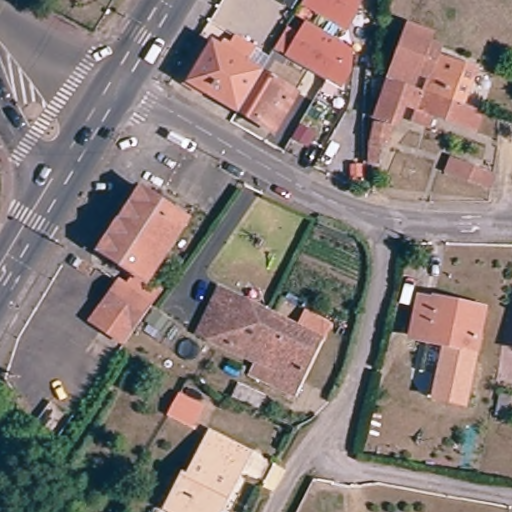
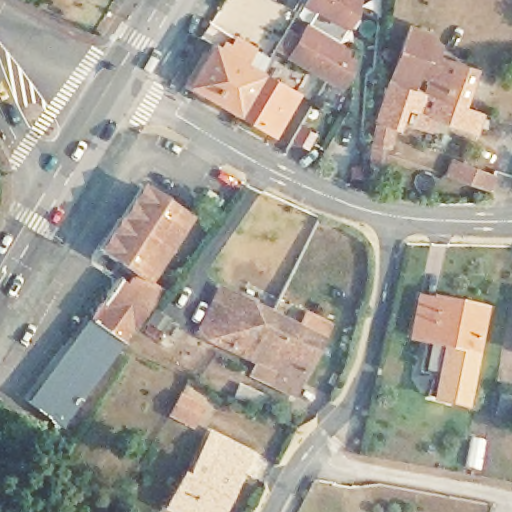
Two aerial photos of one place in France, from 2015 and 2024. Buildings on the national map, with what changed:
unchanged [(297,9),(281,0),(302,0),(297,9)]
unchanged [(363,14),(353,31),(307,4),(310,0),(363,0),(363,14)]
unchanged [(402,18),(424,25),(422,32),(433,36),(430,47),(472,62),(460,98),(383,71),(402,18)]
unchanged [(350,45),(351,46),(343,61),(351,65),(339,86),(325,78),(287,55),(307,21),(350,45)]
unchanged [(260,73),(256,78),(234,117),(185,89),(208,50),(230,63),(239,48),(265,63),(260,73)]
unchanged [(395,118),(371,110),(378,90),(372,88),(379,70),(383,71),(460,98),(477,104),(471,121),(430,107),(425,120),(397,111),(395,118)]
unchanged [(290,98),(267,136),(234,117),(256,78),(290,98)]
unchanged [(387,135),(378,134),(375,156),(362,155),(362,111),(388,121),(387,135)]
unchanged [(488,172),(483,184),(441,167),(446,155),(488,172)]
unchanged [(115,257),(95,244),(137,184),(155,196),(115,257)]
unchanged [(181,213),(139,274),(126,265),(115,257),(155,196),(181,213)]
unchanged [(116,278),(126,265),(139,274),(155,285),(145,300),(115,338),(84,314),(113,276),(116,278)]
unchanged [(270,312),(250,353),(201,330),(220,289),(270,312)]
unchanged [(471,343),(458,396),(427,389),(440,336),(405,327),(415,290),(430,294),(431,290),(481,301),(471,343)]
unchanged [(160,345),(137,327),(153,306),(176,325),(160,345)]
unchanged [(272,381),(253,371),(259,358),(250,353),(270,312),(299,325),(306,312),(327,322),(300,377),(294,390),(272,381)]
new [(124,346),(63,430),(25,401),(89,318),(115,338),(124,346)]
unchanged [(260,405),(232,393),(237,379),(265,391),(260,405)]
unchanged [(195,399),(186,417),(168,409),(164,407),(172,389),(180,392),(195,399)]
unchanged [(183,477),(187,479),(210,436),(250,456),(227,499),(221,512),(168,512),(166,511),(183,477)]

